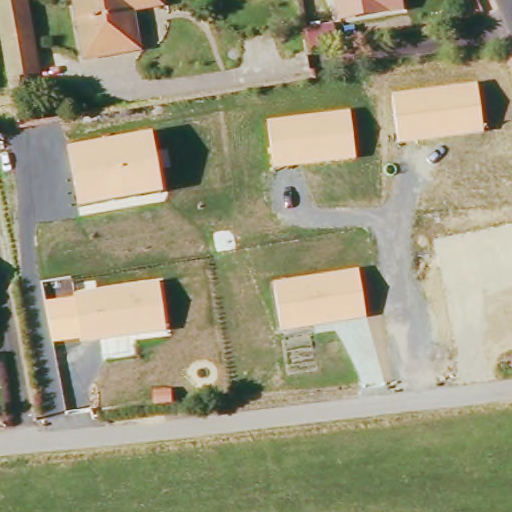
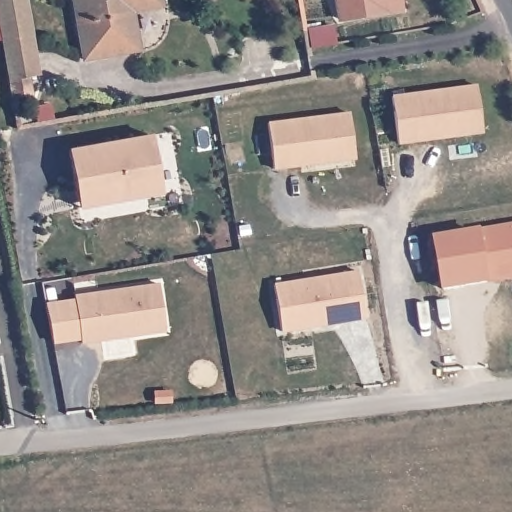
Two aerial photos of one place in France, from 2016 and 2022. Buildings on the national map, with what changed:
unchanged [(22,0),(35,75),(38,91),(10,97),(7,80),(0,44),(0,0),(22,0)]
unchanged [(134,11),(141,50),(83,60),(72,0),(162,0),(164,6),(134,11)]
unchanged [(339,22),(335,0),(396,0),(398,13),(339,22)]
unchanged [(477,84),(483,134),(399,145),(392,94),(477,84)]
unchanged [(351,112),(356,160),(274,170),(269,122),(351,112)]
unchanged [(68,149),(152,134),(163,195),(79,210),(68,149)]
new [(442,291),(434,238),(481,229),(512,224),(512,280),(489,283),(442,291)]
unchanged [(358,270),(366,320),(281,331),(274,282),(358,270)]
unchanged [(166,333),(82,345),(81,341),(53,346),(46,303),(74,299),(74,295),(160,283),(166,333)]

